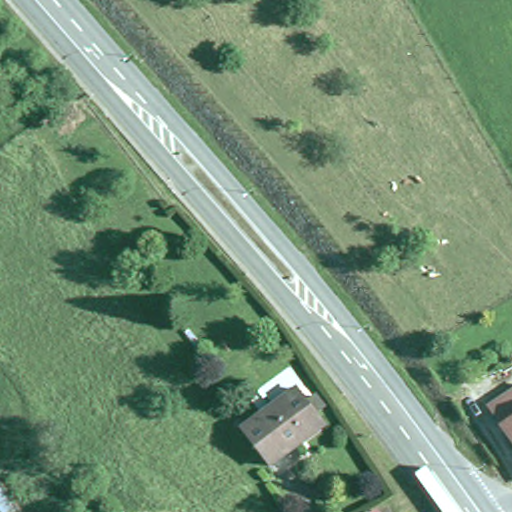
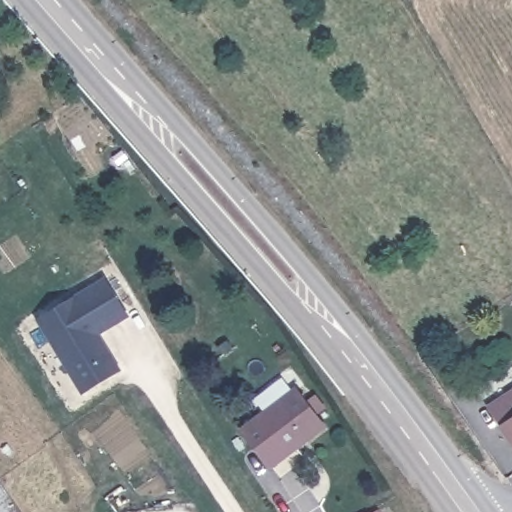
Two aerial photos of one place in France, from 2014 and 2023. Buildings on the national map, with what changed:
new [(131,316),(100,334),(122,370),(82,393),(36,318),(106,275),(131,316)]
unchanged [(301,439),(271,462),(243,426),(297,384),(320,414),(325,420),(301,439)]
unchanged [(483,401),(512,384),(512,439),(501,426),(483,401)]
unchanged [(24,512),(0,512),(0,479),(24,512)]

